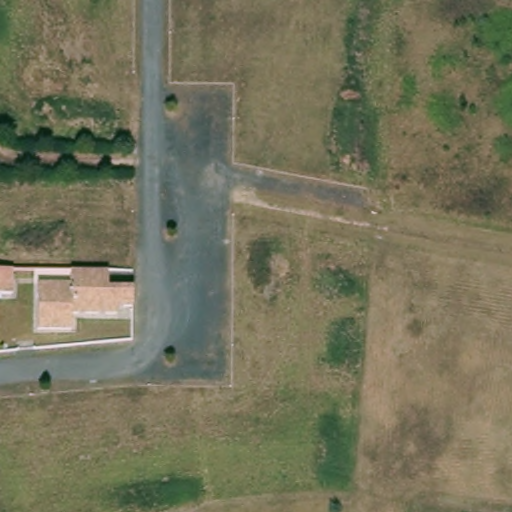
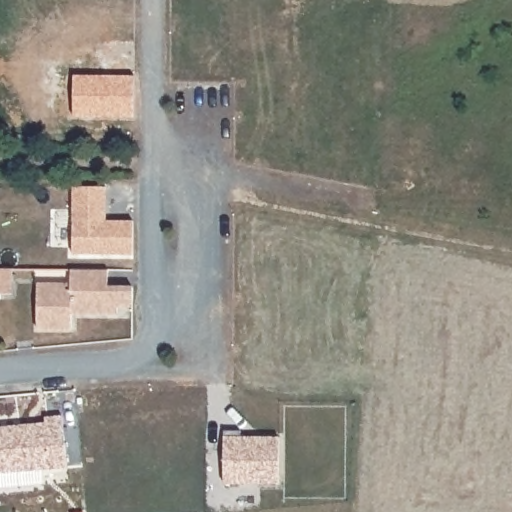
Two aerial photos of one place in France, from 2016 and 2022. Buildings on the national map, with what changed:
new [(71,255),(72,187),(106,187),(106,221),(132,222),(132,256),(71,255)]
unchanged [(36,284),(69,284),(69,273),(106,272),(107,289),(130,288),(131,309),(117,309),(118,316),(70,316),(71,332),(35,332),(36,284)]
new [(62,420),(65,465),(0,471),(0,426),(62,420)]
new [(224,436),(279,438),(278,486),(222,484),(224,436)]

